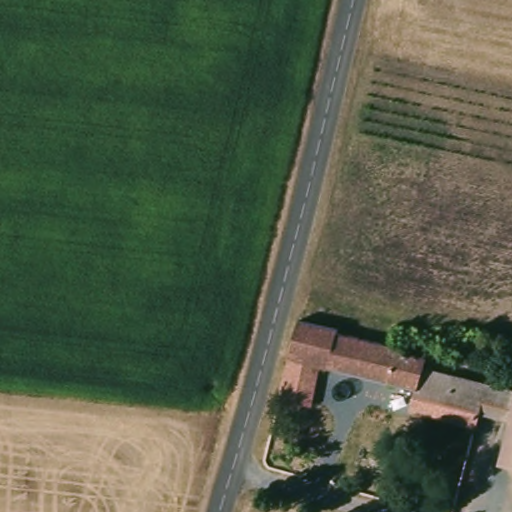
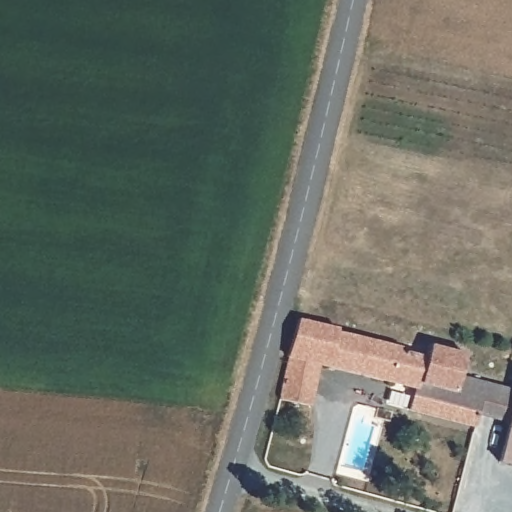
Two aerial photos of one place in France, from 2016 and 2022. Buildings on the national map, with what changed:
unchanged [(479,420),(476,433),(434,422),(408,416),(414,394),(319,370),(318,375),(311,411),(280,406),(281,398),(288,363),(286,363),(298,325),(337,334),(337,338),(367,347),(400,357),(400,353),(438,365),(446,367),(443,378),(487,390),(512,397),(512,471),(500,468),(509,427),(479,420)]

